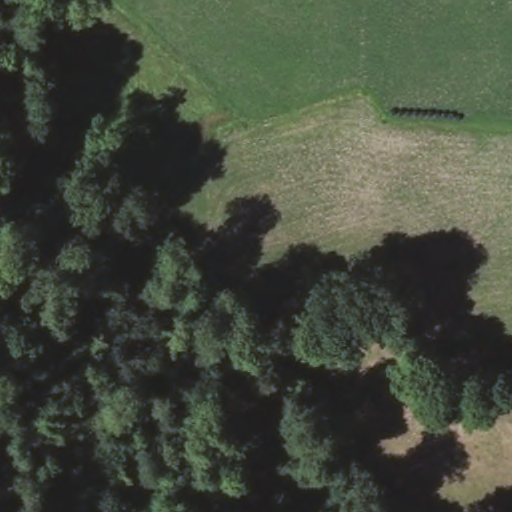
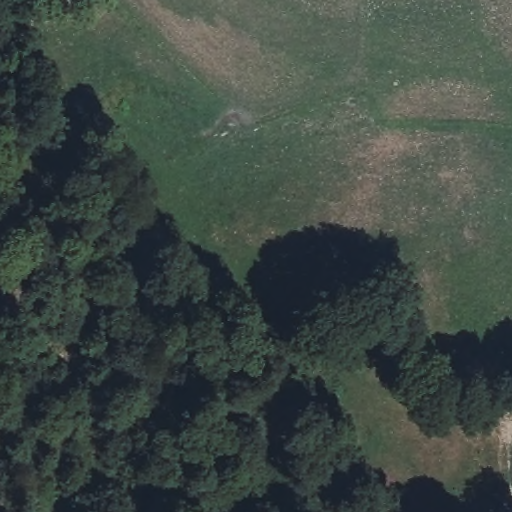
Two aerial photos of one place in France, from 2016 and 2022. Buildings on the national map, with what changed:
[]

